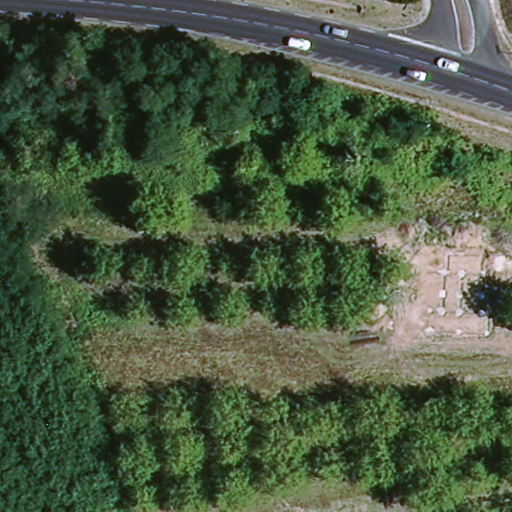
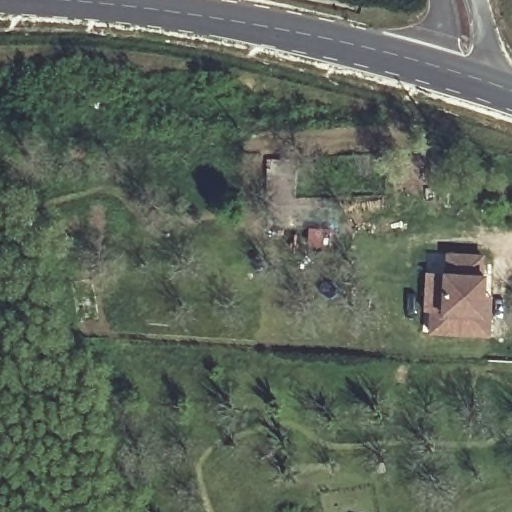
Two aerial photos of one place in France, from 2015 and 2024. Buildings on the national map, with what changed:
new [(485,254),(485,274),(483,313),(491,314),(490,338),(427,335),(428,308),(440,308),(442,273),(444,252),(485,254)]

